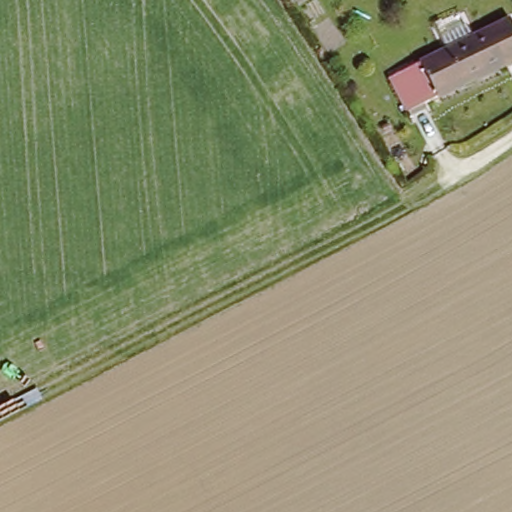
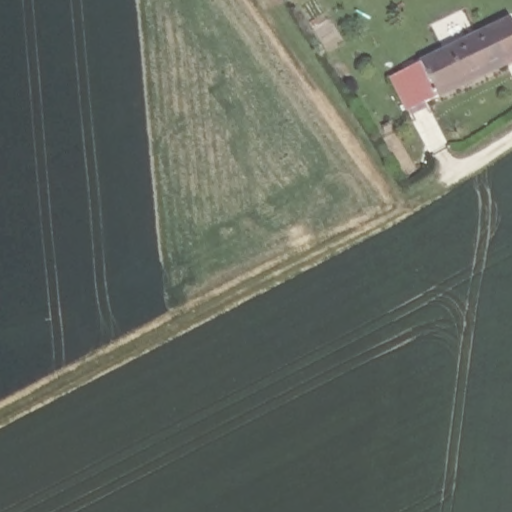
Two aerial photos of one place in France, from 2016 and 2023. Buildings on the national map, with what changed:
unchanged [(390,72),(512,17),(512,60),(405,108),(390,72)]

